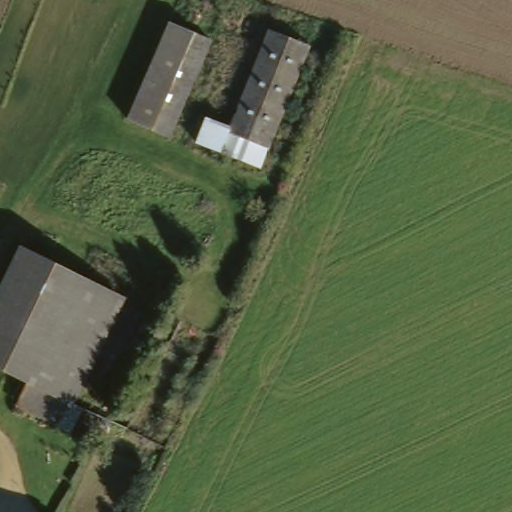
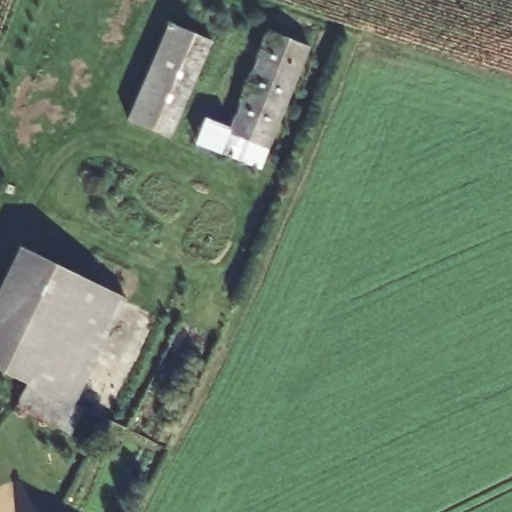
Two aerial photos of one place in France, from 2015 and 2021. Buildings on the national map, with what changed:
unchanged [(180,18),(222,37),(180,133),(138,115),(180,18)]
unchanged [(280,31),(319,47),(271,168),(231,152),(207,144),(217,119),(240,127),(280,31)]
unchanged [(31,244),(135,294),(84,400),(79,398),(38,378),(0,360),(0,306),(31,244)]
unchanged [(79,398),(68,420),(27,400),(38,378),(79,398)]

